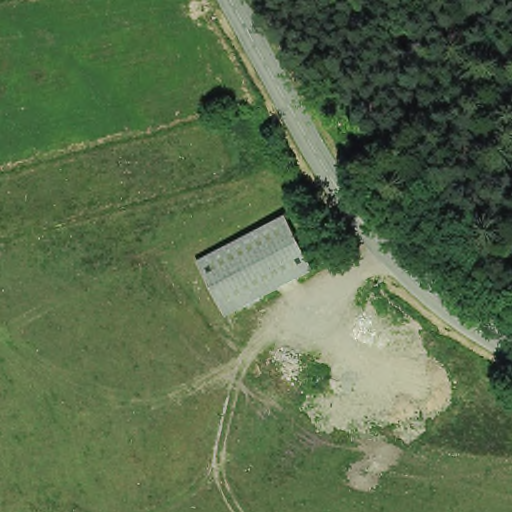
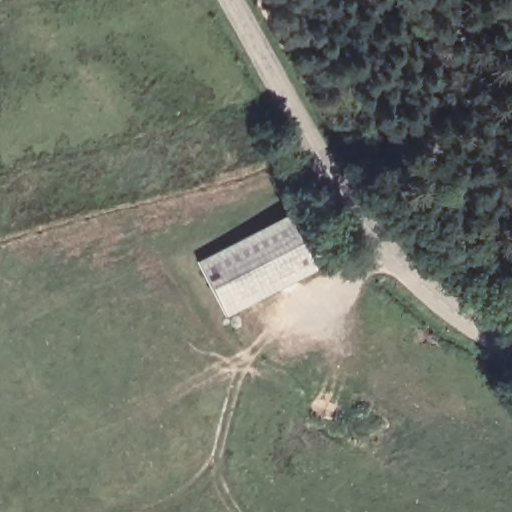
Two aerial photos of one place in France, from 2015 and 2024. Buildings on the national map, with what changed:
unchanged [(283,213),(313,267),(228,318),(197,265),(283,213)]

